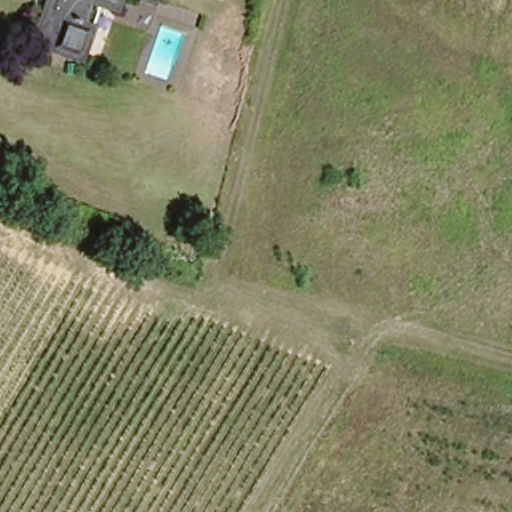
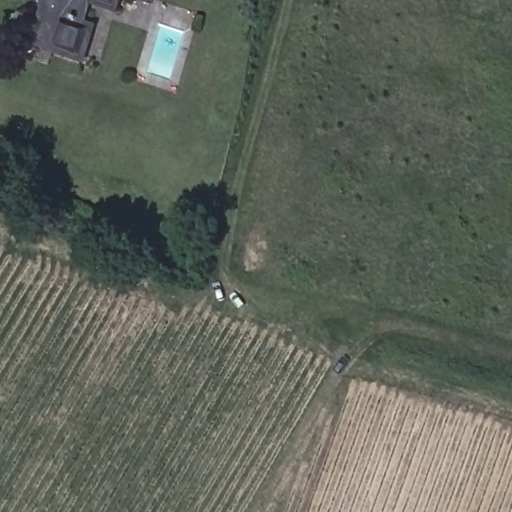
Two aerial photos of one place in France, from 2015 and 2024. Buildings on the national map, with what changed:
unchanged [(114,10),(81,0),(75,22),(83,26),(75,59),(35,45),(47,0),(118,0),(114,10)]

